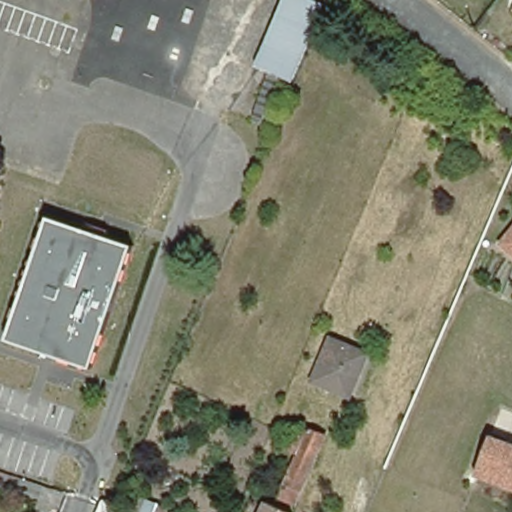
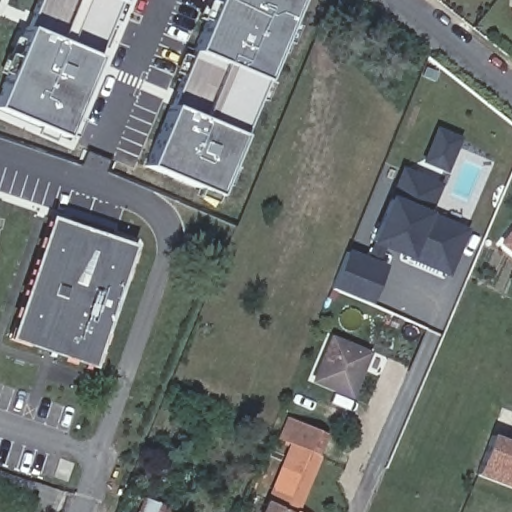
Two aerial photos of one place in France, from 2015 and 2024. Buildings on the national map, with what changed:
new [(62,135),(0,109),(0,90),(38,0),(119,0),(62,135)]
new [(216,195),(146,165),(215,0),(298,0),(216,195)]
demolished [(325,4),(293,82),(281,77),(262,122),(252,119),(270,73),(258,68),(285,0),(315,0),(325,4)]
new [(442,129),(460,136),(448,167),(429,159),(442,129)]
demolished [(267,158),(223,256),(203,247),(246,151),(267,158)]
new [(447,185),(435,212),(474,230),(454,273),(381,244),(412,170),(447,185)]
demolished [(386,192),(405,201),(391,234),(372,227),(386,192)]
unchanged [(136,246),(93,366),(8,337),(51,216),(136,246)]
unchanged [(512,255),(499,246),(512,230),(512,255)]
demolished [(357,249),(377,256),(358,305),(337,297),(357,249)]
new [(338,290),(353,254),(390,269),(374,305),(338,290)]
unchanged [(370,352),(356,392),(317,377),(333,337),(370,352)]
unchanged [(294,512),(289,512),(277,507),(299,456),(293,453),(304,426),(327,436),(294,512)]
unchanged [(512,441),(512,490),(478,477),(495,435),(512,441)]
unchanged [(165,511),(168,512),(137,512),(147,490),(169,500),(165,511)]
unchanged [(112,504),(114,500),(119,503),(115,512),(99,512),(104,501),(112,504)]
unchanged [(281,512),(270,512),(272,508),(281,512)]

